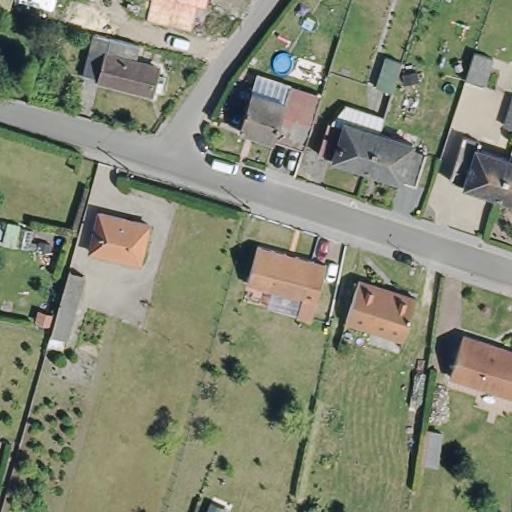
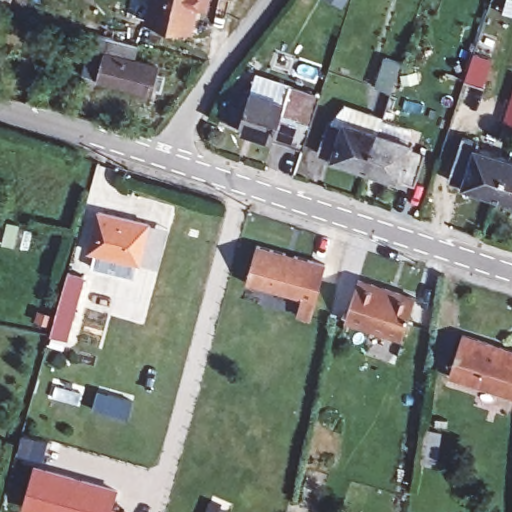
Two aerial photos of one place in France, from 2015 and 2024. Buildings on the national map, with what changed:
unchanged [(205,7),(197,5),(190,30),(148,19),(152,0),(207,0),(205,7)]
unchanged [(125,62),(156,70),(150,94),(99,81),(82,76),(84,70),(90,49),(106,54),(110,39),(130,44),(125,62)]
unchanged [(465,75),(471,52),(473,46),(490,51),(481,80),(465,75)]
unchanged [(376,80),(385,50),(401,55),(395,74),(391,85),(376,80)]
unchanged [(260,135),(235,127),(227,125),(238,89),(259,95),(272,99),(277,84),(300,90),(308,92),(291,145),(260,135)]
unchanged [(502,121),(512,90),(512,125),(502,121)]
unchanged [(317,155),(327,122),(330,124),(336,101),(383,116),(378,131),(365,170),(317,155)]
unchanged [(414,185),(365,170),(378,131),(410,141),(408,149),(424,154),(414,185)]
unchanged [(479,137),(476,145),(508,155),(507,155),(496,191),(448,175),(461,131),(479,137)]
unchanged [(512,156),(512,197),(496,191),(507,155),(508,155),(512,156)]
unchanged [(86,250),(97,210),(143,222),(132,263),(86,250)]
unchanged [(243,279),(255,242),(325,263),(315,299),(243,279)]
unchanged [(47,328),(53,307),(53,306),(65,269),(80,273),(69,310),(61,338),(45,334),(47,328)]
unchanged [(343,317),(356,277),(413,295),(400,335),(343,317)]
unchanged [(450,377),(463,335),(512,352),(512,398),(450,377)]
new [(417,428),(437,431),(432,466),(412,463),(417,428)]
new [(127,512),(28,512),(21,510),(35,464),(118,488),(113,508),(127,512)]

